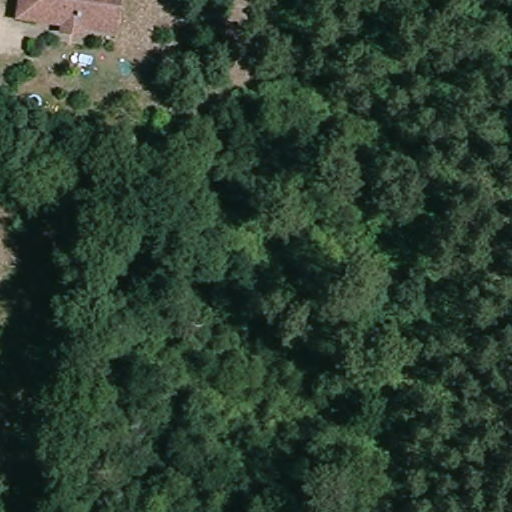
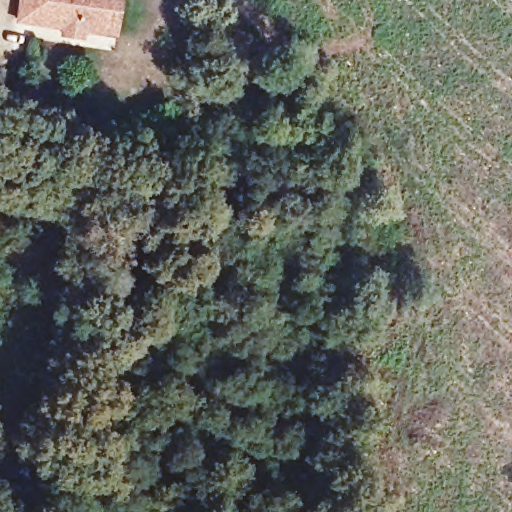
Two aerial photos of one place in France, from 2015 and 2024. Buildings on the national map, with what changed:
unchanged [(105,36),(19,24),(22,0),(123,0),(115,37),(105,36)]

